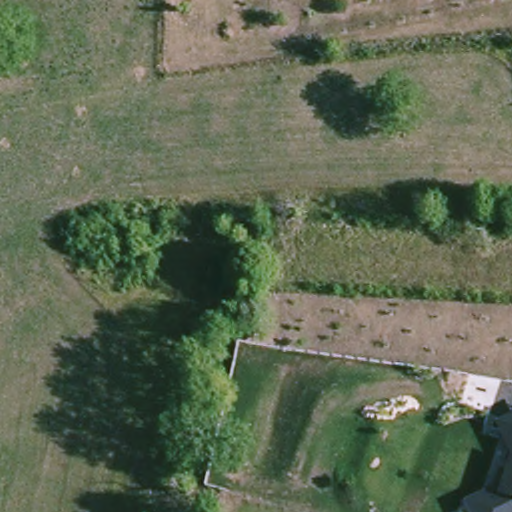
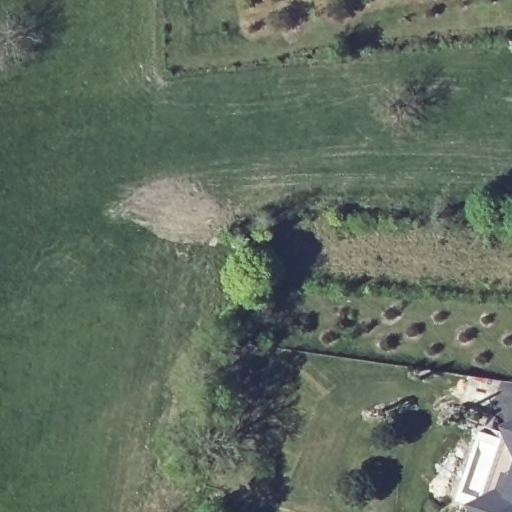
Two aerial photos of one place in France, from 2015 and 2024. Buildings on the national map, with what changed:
unchanged [(462,506),(487,495),(503,442),(496,428),(512,419),(512,512),(466,512),(462,506)]

